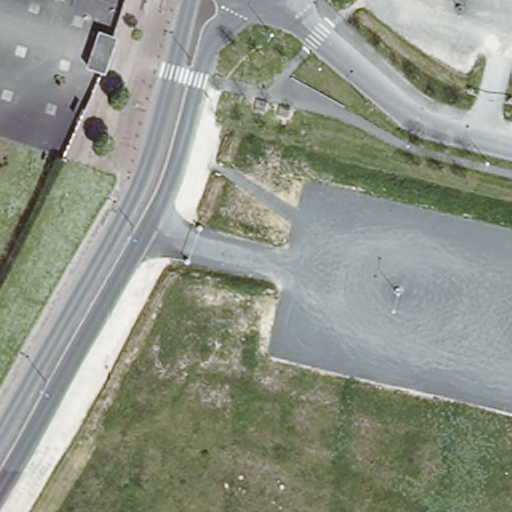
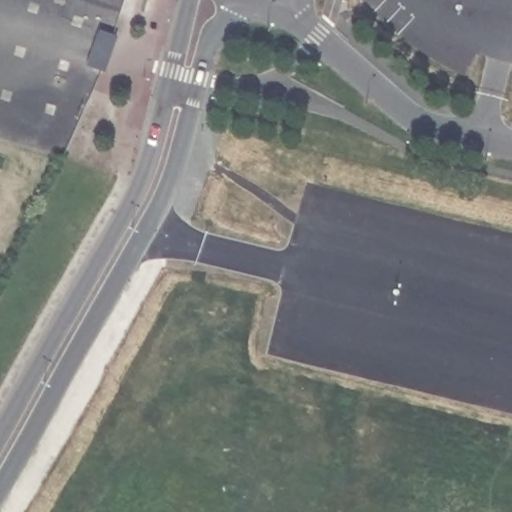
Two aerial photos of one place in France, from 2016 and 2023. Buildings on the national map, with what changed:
unchanged [(88,66),(98,34),(115,40),(117,40),(107,72),(105,71),(88,66)]

